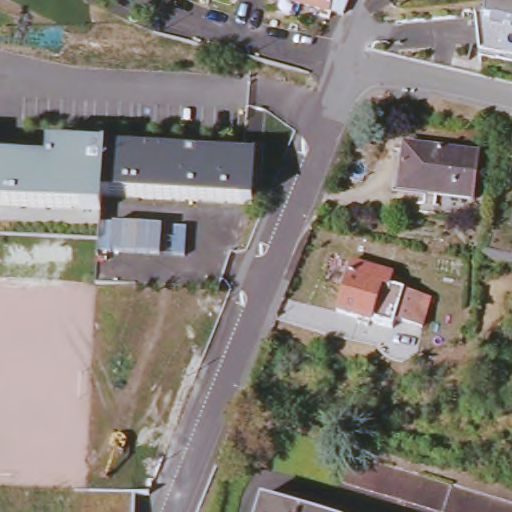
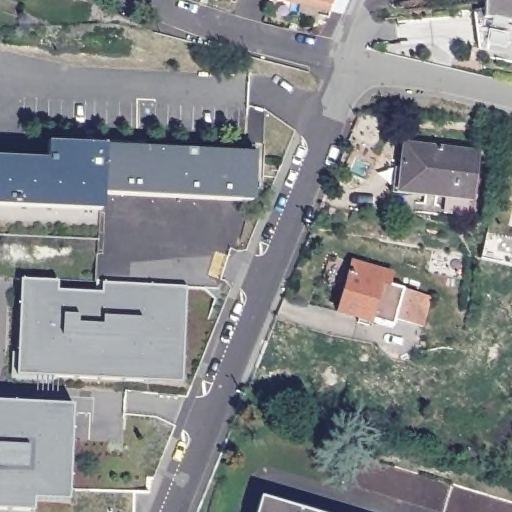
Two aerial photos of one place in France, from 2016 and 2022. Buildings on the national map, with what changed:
unchanged [(298,4),(286,0),(348,0),(342,13),(298,4)]
unchanged [(477,46),(474,7),(481,7),(484,6),(484,0),(512,0),(512,55),(477,46)]
unchanged [(481,150),(475,199),(435,194),(436,187),(399,184),(404,141),(481,150)]
unchanged [(48,149),(257,157),(256,205),(104,200),(102,215),(0,212),(0,164),(47,165),(48,149)]
unchanged [(352,261),(392,272),(389,283),(431,295),(422,325),(396,318),(392,327),(338,311),(352,261)]
new [(18,373),(22,279),(59,280),(59,290),(102,291),(103,282),(189,286),(184,383),(18,373)]
new [(35,500),(35,512),(12,512),(0,511),(0,401),(74,405),(70,500),(35,500)]
unchanged [(512,499),(512,512),(452,512),(349,480),(357,452),(512,499)]
unchanged [(315,512),(258,512),(262,496),(315,512)]

